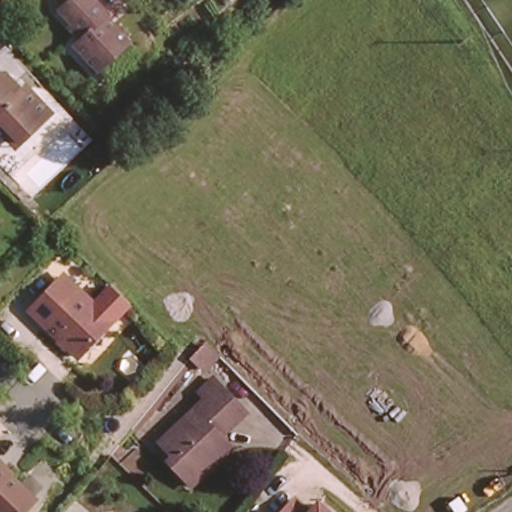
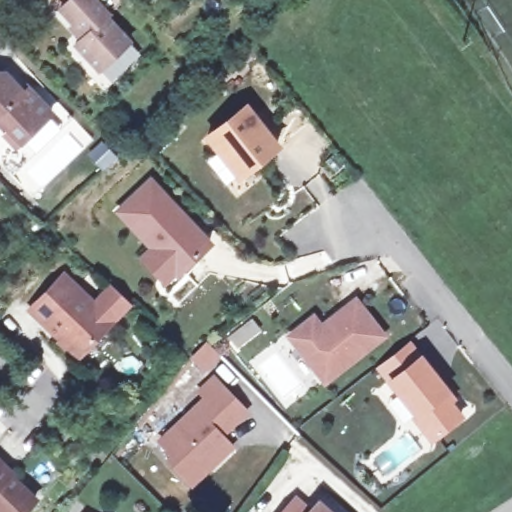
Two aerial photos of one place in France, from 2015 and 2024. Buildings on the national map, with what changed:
unchanged [(57,5),(62,0),(96,0),(105,11),(103,12),(126,38),(95,65),(72,40),(82,32),(57,5)]
unchanged [(0,124),(0,70),(8,70),(24,87),(29,82),(54,109),(24,137),(17,143),(0,124)]
new [(246,103),(280,147),(238,181),(203,136),(246,103)]
new [(176,279),(174,276),(164,285),(137,258),(147,247),(114,212),(150,176),(214,244),(176,279)]
unchanged [(79,360),(28,308),(67,274),(117,325),(79,360)]
new [(324,385),(284,336),(314,312),(322,322),(357,295),(388,337),(324,385)]
unchanged [(204,366),(193,355),(206,342),(217,352),(204,366)]
new [(430,443),(412,419),(414,417),(385,382),(420,353),(452,392),(457,401),(454,403),(464,418),(430,443)]
unchanged [(211,466),(195,483),(170,460),(175,454),(161,442),(205,395),(199,389),(212,375),(246,407),(223,432),(230,438),(234,442),(211,466)]
unchanged [(6,464),(38,494),(21,512),(3,512),(0,509),(0,454),(8,462),(6,464)]
unchanged [(328,512),(281,512),(299,490),(328,512)]

